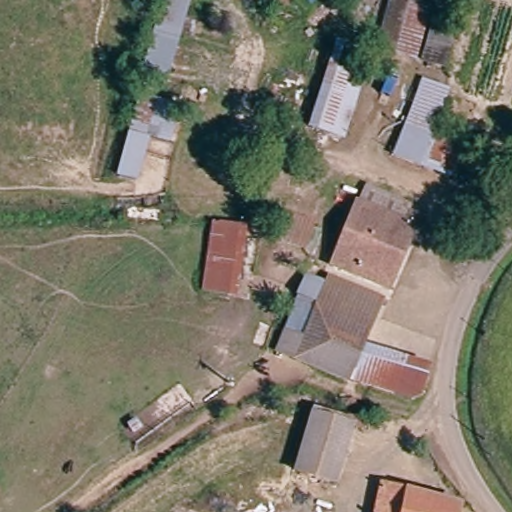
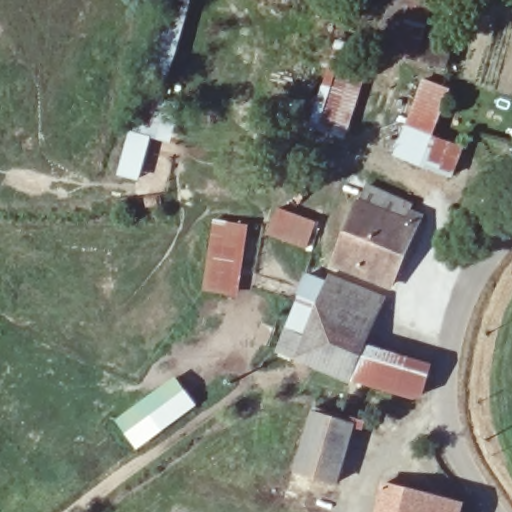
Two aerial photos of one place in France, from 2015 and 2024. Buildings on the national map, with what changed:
unchanged [(176,41),(152,32),(161,0),(189,0),(176,41)]
unchanged [(377,48),(389,0),(434,0),(427,24),(450,31),(443,70),(377,48)]
unchanged [(350,37),(348,51),(363,58),(343,133),(307,124),(337,33),(350,37)]
unchanged [(446,86),(430,131),(460,143),(449,169),(395,148),(424,77),(446,86)]
unchanged [(140,95),(158,100),(147,135),(129,130),(140,95)]
unchanged [(284,116),(302,119),(300,132),(282,129),(284,116)]
unchanged [(122,149),(140,154),(134,177),(116,172),(122,149)]
unchanged [(410,203),(408,210),(420,215),(388,287),(330,264),(365,186),(410,203)]
unchanged [(277,206),(313,219),(305,243),(268,230),(277,206)]
unchanged [(212,220),(246,225),(236,296),(201,291),(212,220)]
unchanged [(378,303),(361,345),(418,364),(420,364),(410,398),(348,379),(345,382),(270,350),(290,303),(308,311),(322,279),(378,303)]
new [(176,376),(197,405),(137,449),(116,420),(176,376)]
unchanged [(312,415),(352,428),(335,481),(296,468),(312,415)]
unchanged [(402,490),(458,505),(457,512),(376,512),(382,485),(402,490)]

